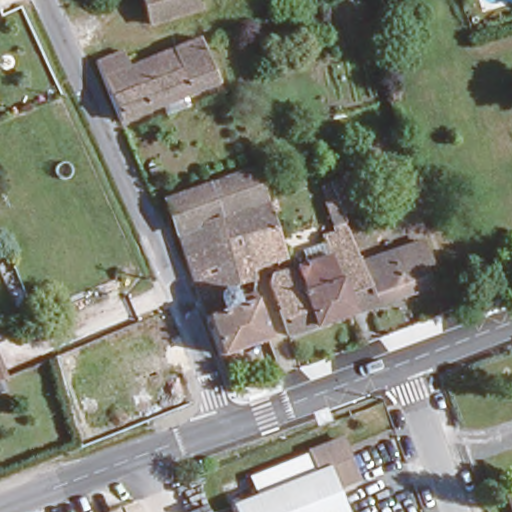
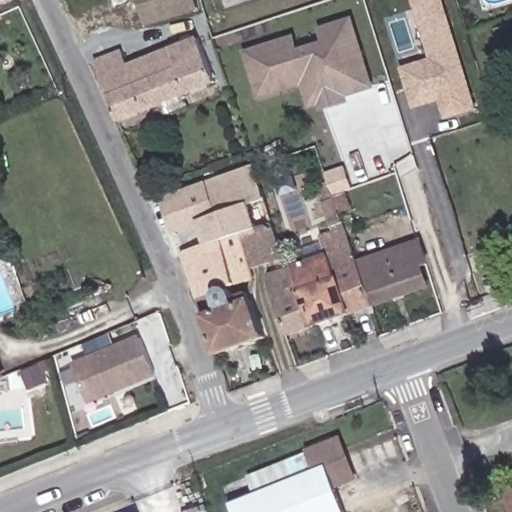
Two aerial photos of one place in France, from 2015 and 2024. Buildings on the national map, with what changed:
unchanged [(147,0),(205,0),(206,1),(155,19),(147,0)]
new [(440,102),(414,111),(402,69),(430,61),(412,0),(445,0),(479,110),(445,120),(440,102)]
new [(300,49),(324,42),(319,27),(355,17),(377,89),(348,97),(350,104),(321,112),(319,107),(309,110),(302,86),(259,100),(244,50),(296,35),(300,49)]
unchanged [(123,120),(115,105),(90,57),(124,41),(136,60),(197,35),(215,76),(123,120)]
unchanged [(267,223),(240,232),(186,250),(168,191),(256,161),(278,219),(267,223)]
unchanged [(323,237),(316,219),(328,215),(314,179),(330,172),(337,191),(347,187),(355,205),(343,210),(351,231),(360,257),(375,300),(347,310),(323,237)]
unchanged [(277,257),(251,267),(240,232),(267,223),(277,257)]
unchanged [(227,276),(234,300),(250,294),(264,340),(218,355),(186,250),(240,232),(251,267),(227,276)]
unchanged [(417,236),(425,260),(417,262),(425,285),(377,304),(375,300),(360,257),(417,236)]
unchanged [(289,330),(273,283),(278,281),(274,270),(308,258),(304,245),(323,237),(347,310),(289,330)]
new [(158,377),(91,405),(74,363),(140,335),(158,377)]
demolished [(140,380),(132,360),(164,346),(173,367),(140,380)]
unchanged [(0,376),(0,361),(5,374),(0,376)]
unchanged [(325,487),(334,512),(232,512),(228,500),(310,470),(301,449),(335,437),(351,477),(325,487)]
unchanged [(512,487),(512,510),(505,490),(512,487)]

